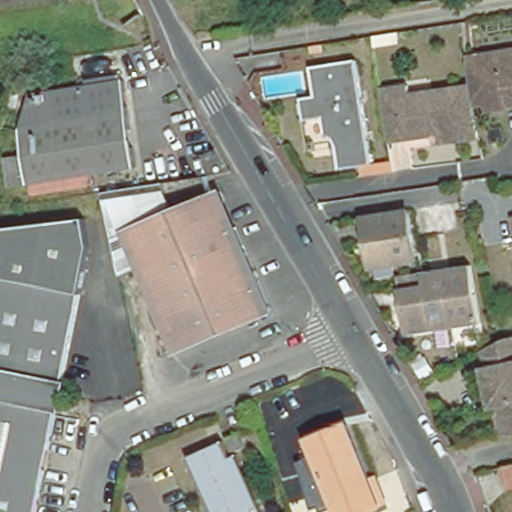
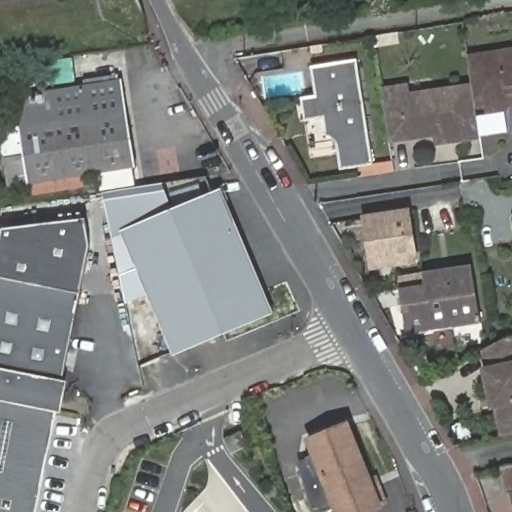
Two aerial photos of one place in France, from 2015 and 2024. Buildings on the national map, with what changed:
unchanged [(384,81),(411,77),(413,85),(474,76),(470,51),(480,49),(512,44),(512,100),(489,103),(488,96),(477,99),(481,129),(450,134),(439,136),(437,126),(391,133),(384,81)]
unchanged [(310,71),(357,64),(358,73),(371,170),(337,175),(334,151),(324,139),(321,122),(305,125),(302,101),(313,100),(311,80),(310,71)]
unchanged [(119,84),(133,170),(26,188),(7,191),(3,163),(21,160),(17,132),(24,99),(119,84)]
unchanged [(123,235),(138,271),(119,279),(102,197),(163,188),(170,209),(174,213),(123,235)]
unchanged [(138,271),(123,235),(174,213),(215,196),(268,317),(175,357),(138,271)]
unchanged [(512,208),(512,215),(511,209),(512,208)]
unchanged [(413,231),(414,236),(367,243),(364,217),(410,211),(413,231)]
unchanged [(5,229),(86,218),(91,247),(80,296),(61,383),(55,382),(54,387),(61,388),(64,390),(65,391),(64,393),(62,394),(59,395),(52,394),(49,407),(56,409),(34,512),(0,512),(0,253),(5,229)]
unchanged [(414,236),(417,261),(371,268),(367,243),(414,236)]
unchanged [(400,291),(398,277),(423,273),(472,265),(482,322),(455,327),(408,335),(400,291)]
unchanged [(488,407),(479,369),(484,368),(479,347),(490,341),(501,335),(512,333),(512,430),(498,434),(492,406),(488,407)]
unchanged [(381,504),(375,506),(376,510),(369,512),(332,512),(305,443),(346,428),(366,482),(373,479),(381,504)]
unchanged [(241,431),(246,446),(229,451),(224,436),(241,431)]
demolished [(216,440),(223,456),(230,454),(254,512),(205,512),(181,455),(216,440)]
unchanged [(499,462),(512,459),(512,479),(503,481),(499,462)]

